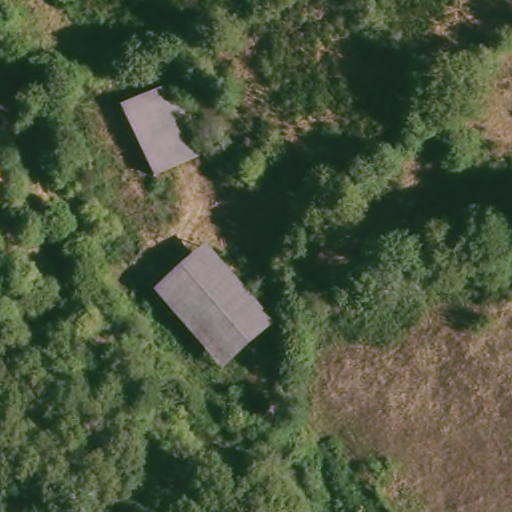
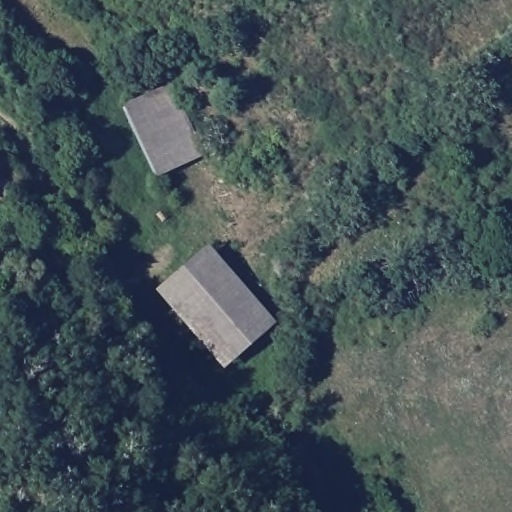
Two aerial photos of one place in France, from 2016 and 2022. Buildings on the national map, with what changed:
unchanged [(212,153),(163,176),(132,110),(180,88),(212,153)]
unchanged [(19,182),(33,198),(22,210),(0,205),(0,172),(19,182)]
unchanged [(281,325),(232,368),(164,294),(215,250),(281,325)]

